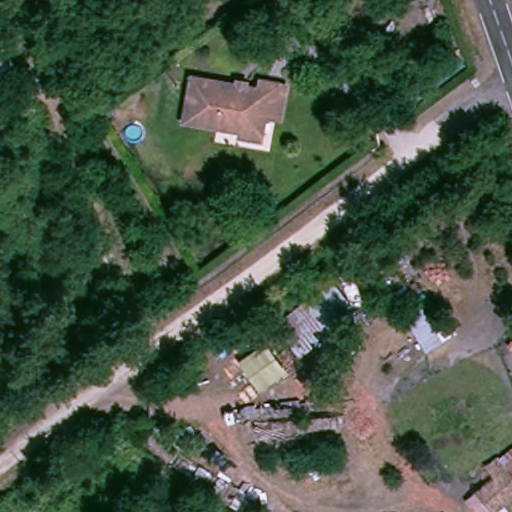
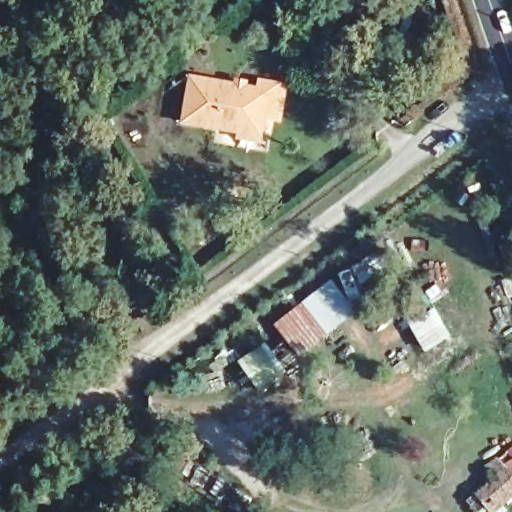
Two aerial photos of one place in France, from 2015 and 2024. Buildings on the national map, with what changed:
unchanged [(242,136),(244,130),(187,120),(195,77),(240,85),(241,80),(249,82),(248,86),(262,88),(263,80),(288,84),(282,117),(268,115),(265,133),(263,139),(242,136)]
new [(350,272),(372,255),(383,269),(357,290),(363,299),(353,307),(357,312),(324,339),(320,334),(296,353),(275,326),(339,273),(350,272)]
unchanged [(494,512),(470,512),(462,501),(473,492),(472,491),(502,466),(497,460),(512,449),(512,496),(494,512)]

